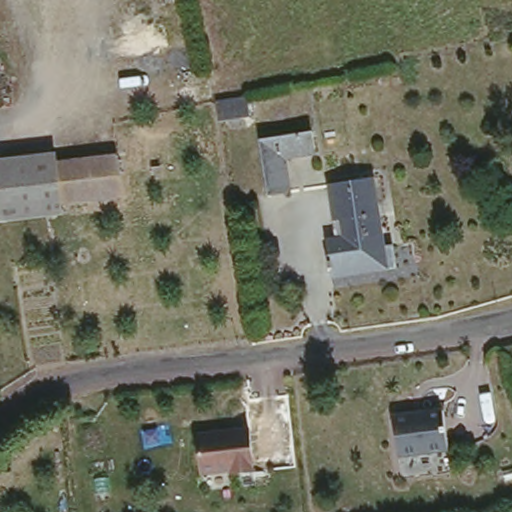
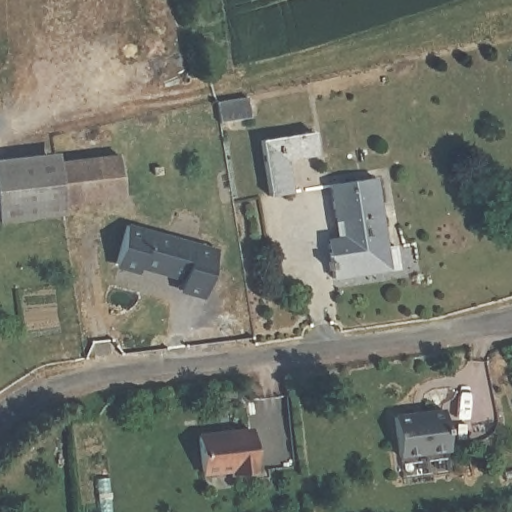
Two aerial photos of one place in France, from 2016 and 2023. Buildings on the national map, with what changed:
unchanged [(250,105),(215,114),(212,99),(215,98),(247,91),(250,105)]
unchanged [(285,161),(290,193),(266,198),(257,146),(297,139),(311,137),(315,156),(302,158),(285,161)]
unchanged [(0,221),(0,160),(56,152),(57,163),(62,203),(64,213),(0,221)]
unchanged [(57,163),(120,155),(125,196),(62,203),(57,163)]
unchanged [(391,245),(396,244),(400,268),(336,278),(330,238),(340,238),(336,212),(331,184),(378,177),(383,205),(391,245)]
new [(125,225),(216,252),(204,299),(180,293),(181,286),(139,272),(137,277),(114,270),(115,262),(125,225)]
unchanged [(444,415),(450,455),(397,460),(392,420),(444,415)]
unchanged [(249,432),(251,476),(230,478),(229,471),(195,473),(195,436),(249,432)]

